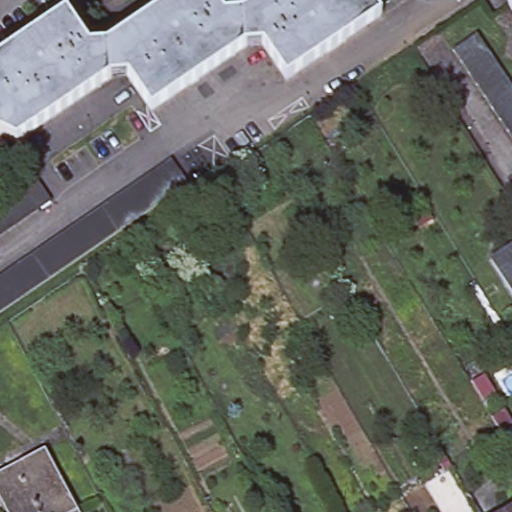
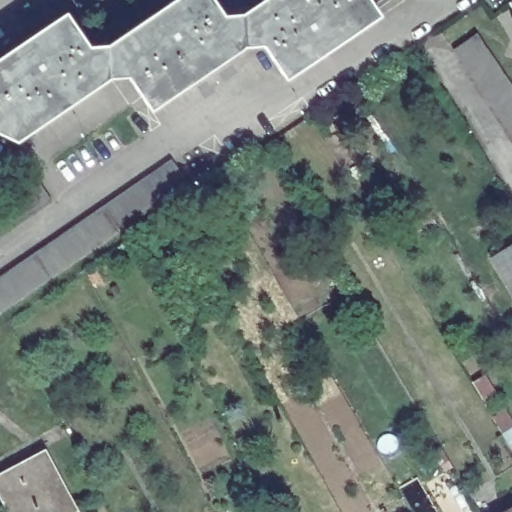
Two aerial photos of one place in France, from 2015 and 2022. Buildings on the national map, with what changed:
unchanged [(216,0),(226,16),(244,14),(247,46),(155,110),(130,77),(112,79),(110,45),(177,0),(216,0)]
unchanged [(247,46),(244,14),(264,0),(373,0),(378,8),(383,15),(290,79),(266,45),(247,46)]
unchanged [(512,2),(512,6),(510,3),(512,2)]
unchanged [(0,133),(0,59),(69,14),(92,48),(110,45),(112,79),(19,141),(0,133)]
unchanged [(512,81),(512,134),(455,49),(479,32),(512,81)]
unchanged [(174,155),(191,181),(0,317),(0,275),(174,155)]
unchanged [(37,180),(53,203),(0,241),(0,206),(37,180)]
unchanged [(512,242),(512,280),(495,253),(512,242)]
unchanged [(0,486),(0,474),(27,460),(50,448),(80,506),(83,512),(14,512),(0,486)]
unchanged [(512,512),(500,512),(512,505),(512,512)]

